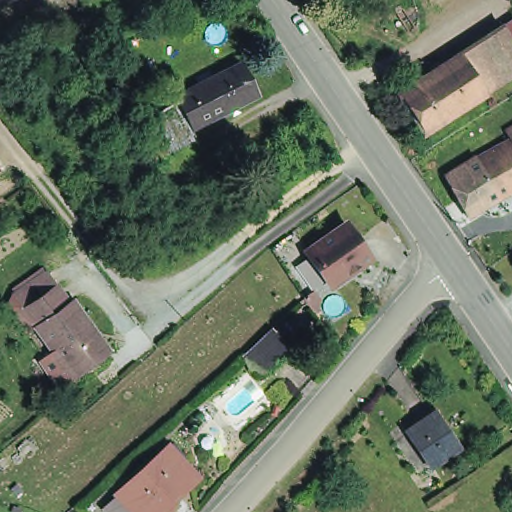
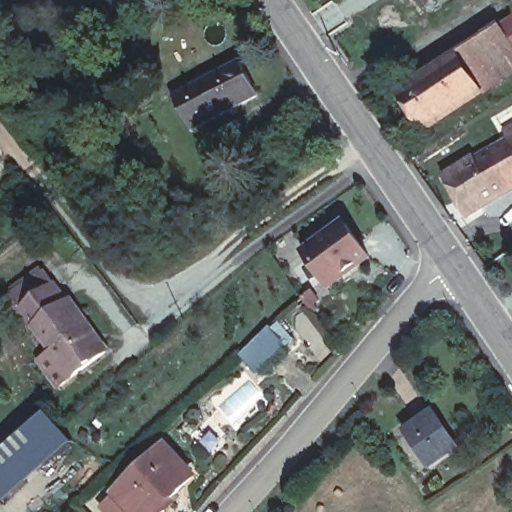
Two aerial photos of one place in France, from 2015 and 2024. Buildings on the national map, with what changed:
new [(512,37),(503,23),(512,18),(512,37)]
unchanged [(512,37),(512,71),(487,87),(462,50),(503,23),(512,37)]
unchanged [(462,50),(487,87),(427,127),(402,89),(462,50)]
unchanged [(178,95),(244,60),(262,94),(197,129),(180,98),(178,95)]
unchanged [(307,257),(348,228),(371,261),(330,290),(307,257)]
unchanged [(32,303),(25,308),(17,309),(12,302),(18,288),(50,264),(62,281),(75,297),(78,295),(114,344),(80,369),(65,380),(47,355),(61,344),(44,320),(32,303)]
unchanged [(238,354),(268,328),(284,346),(255,372),(238,354)]
unchanged [(430,458),(408,426),(434,409),(455,441),(430,458)]
new [(76,443),(0,507),(0,456),(53,414),(76,443)]
unchanged [(195,473),(162,502),(166,507),(161,512),(142,512),(135,504),(120,488),(124,485),(170,444),(195,473)]

